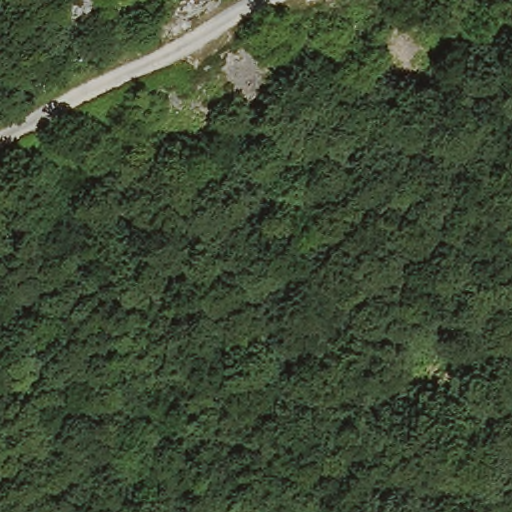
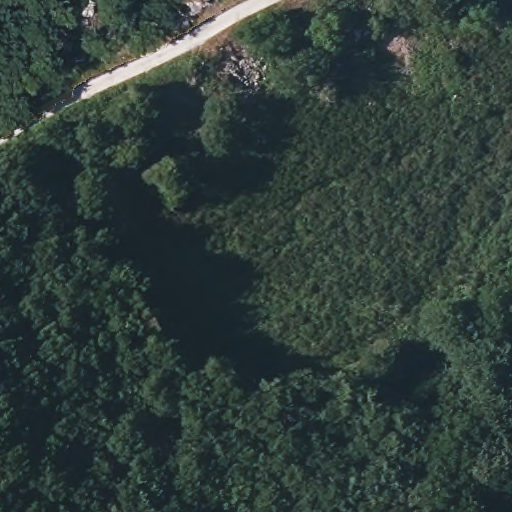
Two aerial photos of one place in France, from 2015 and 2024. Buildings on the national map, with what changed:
[]

